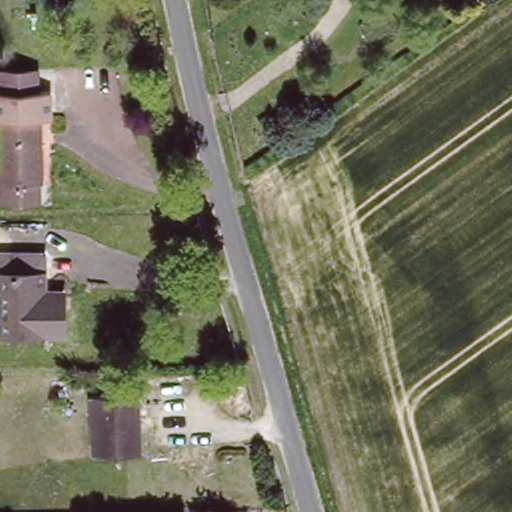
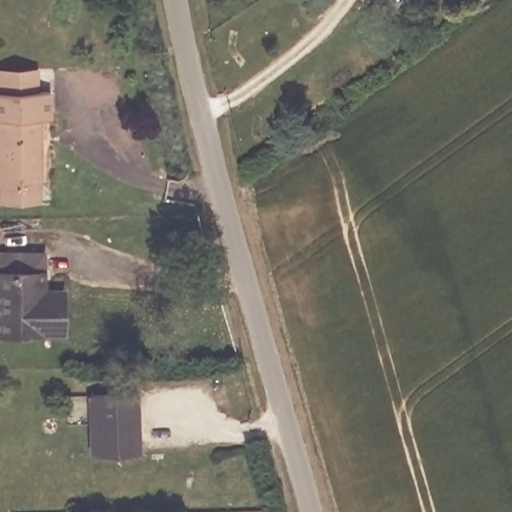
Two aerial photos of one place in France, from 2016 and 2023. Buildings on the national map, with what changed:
unchanged [(4,185),(2,185),(2,166),(0,166),(0,87),(1,87),(1,66),(42,64),(43,87),(56,87),(57,116),(44,116),(43,185),(41,185),(41,205),(4,204),(4,185)]
unchanged [(47,250),(48,292),(68,292),(68,300),(68,338),(9,338),(0,338),(0,250),(47,250)]
unchanged [(137,392),(141,449),(95,452),(91,395),(137,392)]

